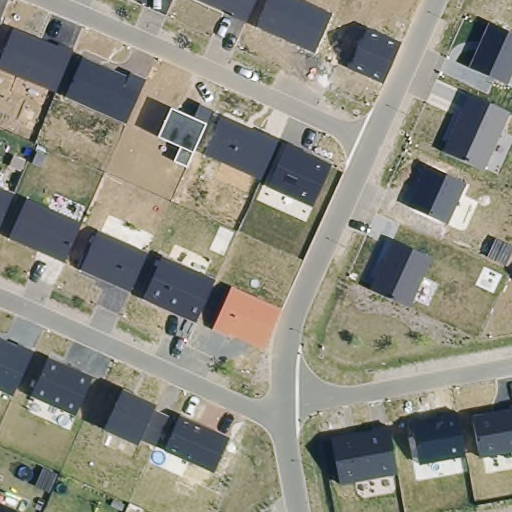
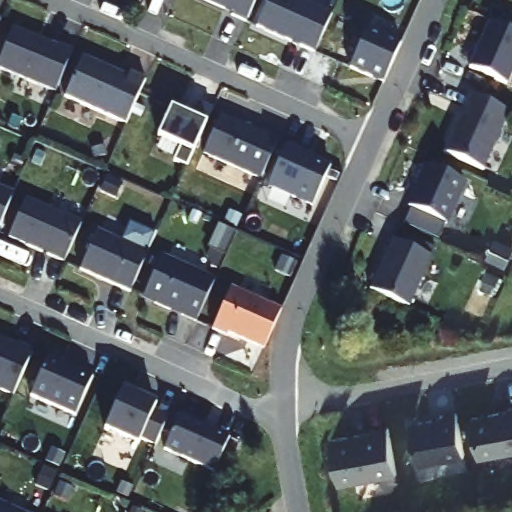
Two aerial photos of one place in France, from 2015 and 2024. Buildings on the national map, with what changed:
unchanged [(203,0),(256,0),(247,23),(203,0)]
unchanged [(267,0),(299,0),(331,13),(316,53),(256,27),(267,0)]
unchanged [(0,25),(0,18),(3,19),(0,25)]
unchanged [(489,23),(512,33),(512,75),(508,84),(469,68),(489,23)]
unchanged [(56,93),(0,70),(0,59),(15,28),(73,49),(56,93)]
unchanged [(366,28),(402,41),(383,83),(350,68),(366,28)]
unchanged [(128,77),(131,73),(146,79),(126,124),(66,96),(83,58),(128,77)]
unchanged [(468,95),(510,112),(484,170),(444,153),(468,95)]
unchanged [(193,118),(199,104),(212,109),(206,124),(193,152),(186,166),(175,161),(181,147),(158,136),(171,109),(193,118)]
unchanged [(221,118),(252,131),(254,128),(279,137),(260,181),(206,154),(221,118)]
unchanged [(287,144),(331,164),(313,208),(268,187),(287,144)]
unchanged [(426,165),(466,181),(447,224),(409,205),(426,165)]
unchanged [(0,229),(0,187),(13,192),(0,229)]
unchanged [(9,238),(27,199),(83,222),(65,264),(9,238)]
unchanged [(130,292),(80,267),(98,230),(148,253),(130,292)]
unchanged [(392,240),(432,257),(409,307),(372,290),(392,240)]
unchanged [(141,299),(161,256),(215,279),(196,323),(141,299)]
unchanged [(283,308),(264,351),(213,330),(233,287),(283,308)]
unchanged [(14,398),(0,391),(0,337),(34,350),(14,398)]
unchanged [(48,357),(93,376),(77,415),(31,396),(48,357)]
unchanged [(124,389),(156,404),(153,408),(169,416),(156,446),(139,438),(136,445),(105,431),(124,389)]
unchanged [(512,407),(512,454),(480,459),(472,415),(512,407)]
unchanged [(458,413),(465,456),(419,465),(413,422),(458,413)]
unchanged [(181,415),(230,437),(215,473),(166,452),(181,415)]
unchanged [(389,427),(399,475),(339,484),(330,437),(389,427)]
unchanged [(0,503),(20,512),(0,512),(0,503)]

